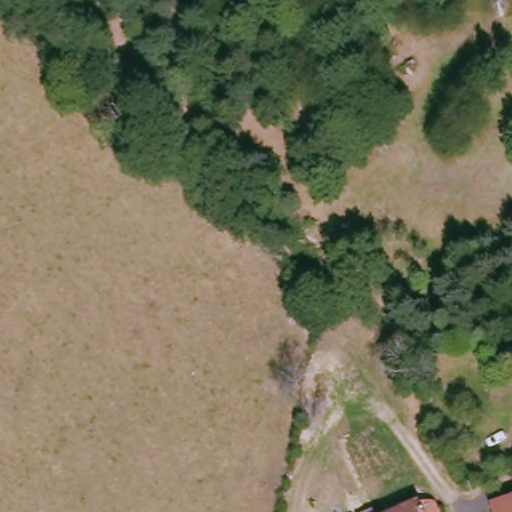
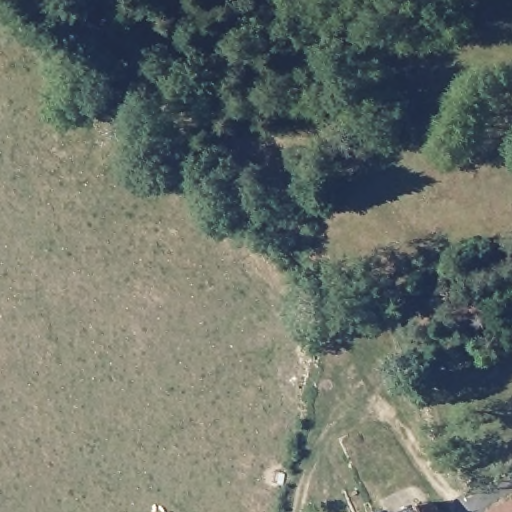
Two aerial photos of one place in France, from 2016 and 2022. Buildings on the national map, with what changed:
unchanged [(430,486),(432,487),(437,485),(442,485),(446,490),(448,493),(448,497),(440,505),(444,512),(394,512),(390,503),(430,486)]
unchanged [(512,492),(512,512),(489,512),(487,502),(512,492)]
unchanged [(368,501),(382,493),(388,505),(390,503),(394,512),(351,512),(350,511),(368,501)]

